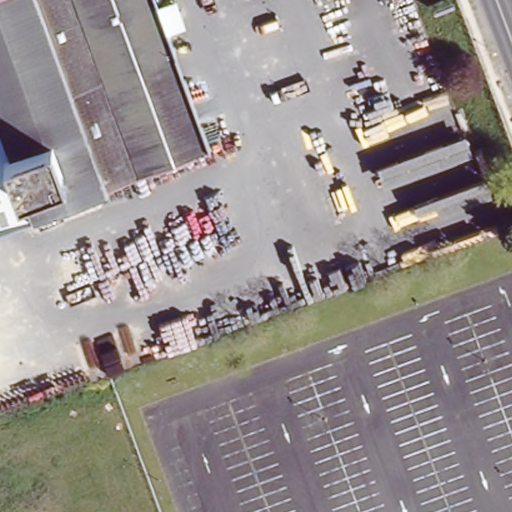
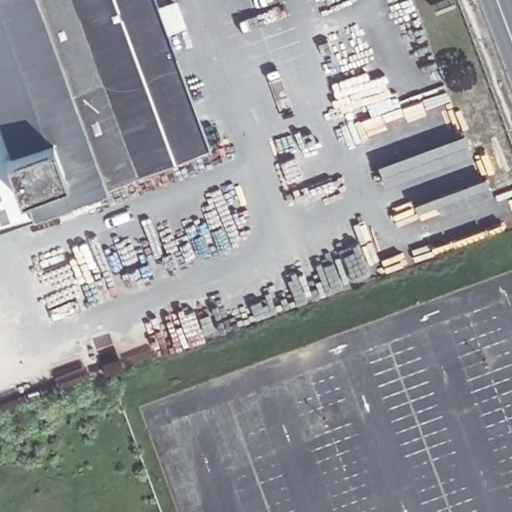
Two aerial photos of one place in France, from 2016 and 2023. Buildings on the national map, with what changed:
unchanged [(181,30),(165,36),(207,148),(95,190),(100,206),(57,221),(52,206),(30,214),(21,189),(16,191),(2,153),(7,151),(0,131),(0,0),(152,0),(152,1),(155,0),(170,0),(181,30)]
unchanged [(377,161),(467,129),(473,148),(383,180),(377,161)]
unchanged [(487,170),(497,195),(417,221),(408,198),(487,170)]

